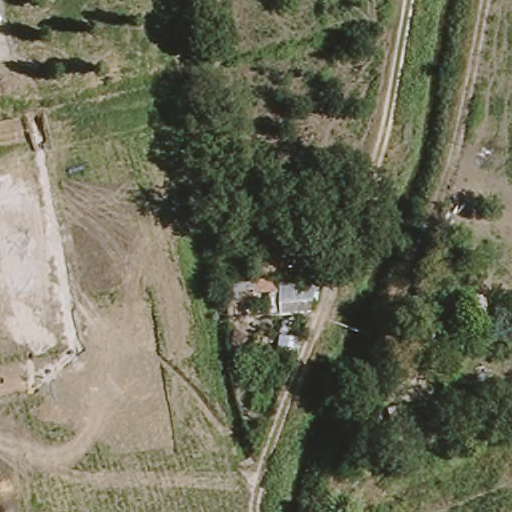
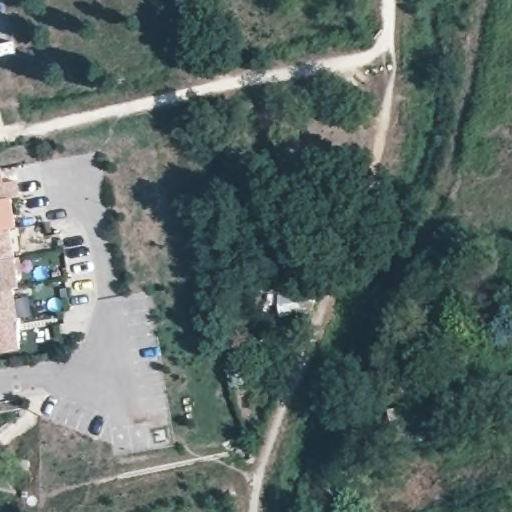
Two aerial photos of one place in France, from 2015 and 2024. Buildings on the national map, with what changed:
new [(0,170),(3,184),(15,181),(18,198),(10,199),(15,228),(10,229),(15,259),(18,258),(21,275),(17,275),(18,288),(13,289),(18,319),(20,318),(20,349),(0,352),(0,170)]
unchanged [(277,280),(277,283),(293,281),(293,284),(318,282),(314,300),(277,303),(277,293),(251,291),(251,278),(277,280)]
unchanged [(293,359),(270,354),(273,340),(297,343),(293,359)]
unchanged [(392,405),(413,401),(419,429),(395,435),(392,405)]

